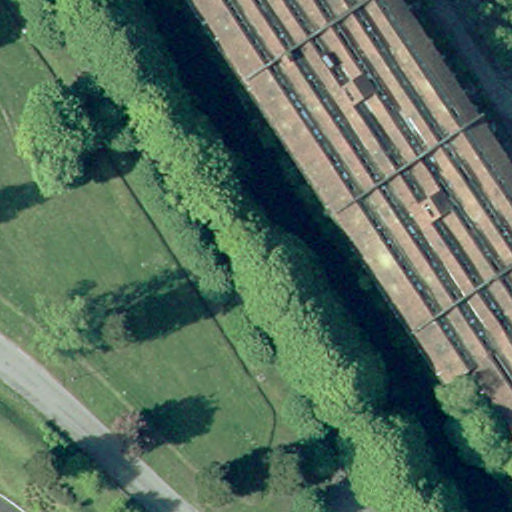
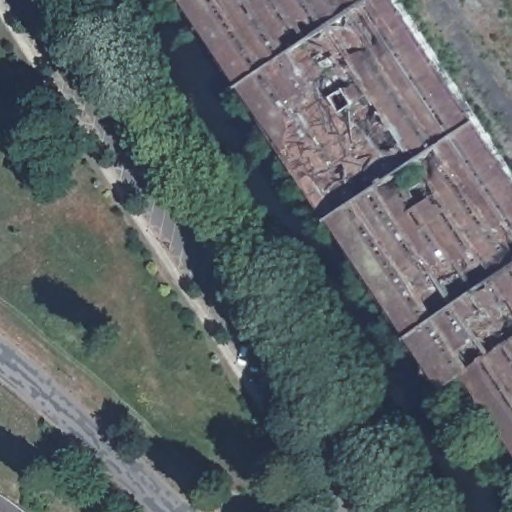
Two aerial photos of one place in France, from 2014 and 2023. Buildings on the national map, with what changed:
unchanged [(462,367),(442,377),(189,0),(400,0),(512,168),(512,441),(462,367)]

